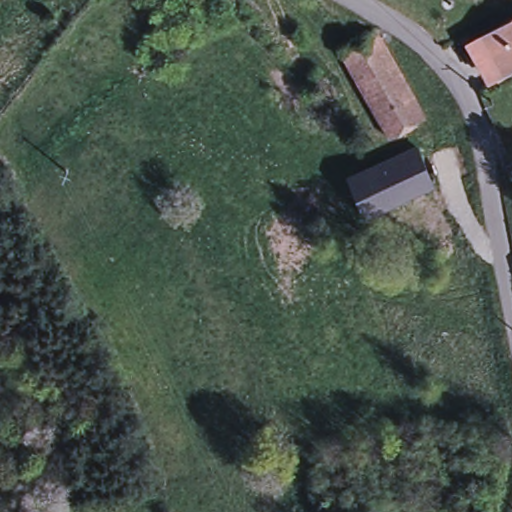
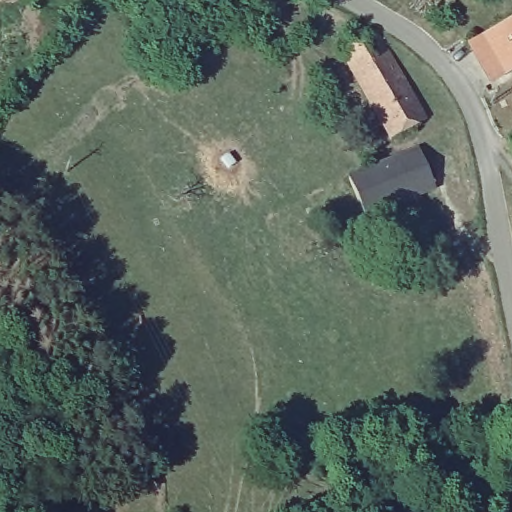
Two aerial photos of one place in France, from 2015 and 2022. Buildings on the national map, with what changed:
unchanged [(51,4),(54,16),(35,21),(32,9),(51,4)]
unchanged [(467,54),(512,28),(512,75),(487,90),(467,54)]
unchanged [(342,52),(379,32),(405,81),(370,101),(342,52)]
unchanged [(405,81),(427,121),(393,141),(370,101),(405,81)]
unchanged [(375,165),(420,145),(437,184),(385,206),(367,213),(350,175),(369,167),(375,165)]

